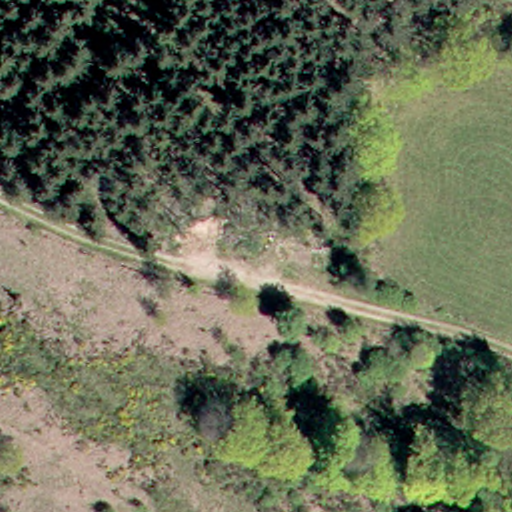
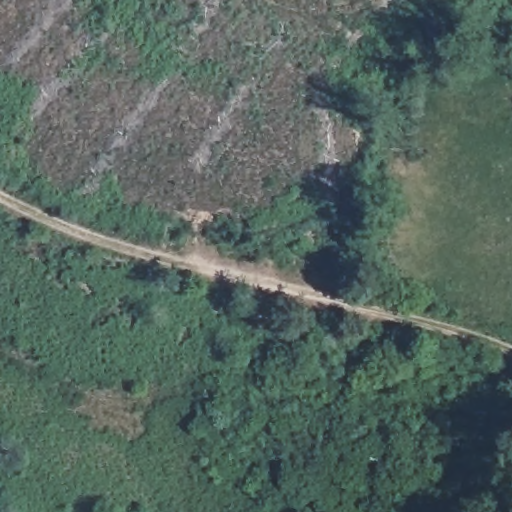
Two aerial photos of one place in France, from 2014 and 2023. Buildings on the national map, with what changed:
[]

